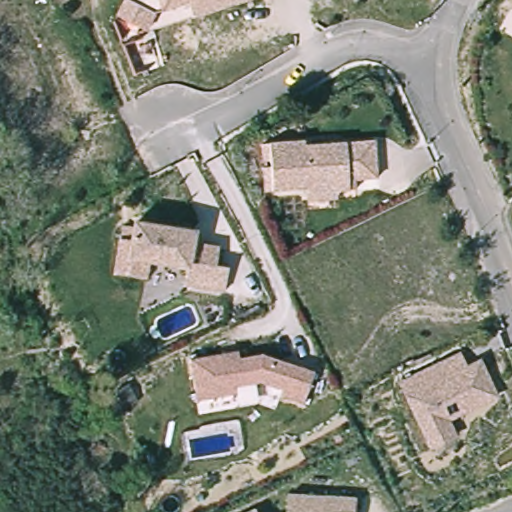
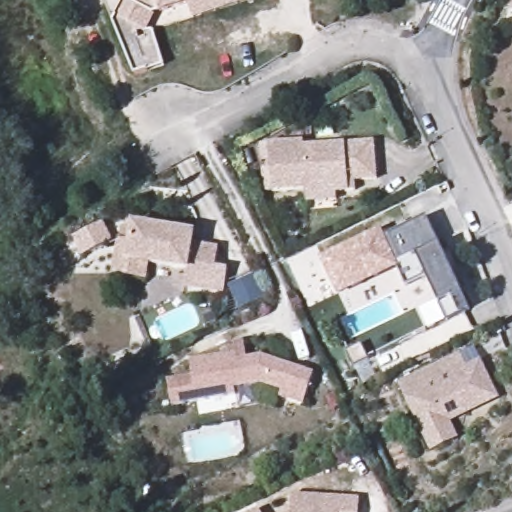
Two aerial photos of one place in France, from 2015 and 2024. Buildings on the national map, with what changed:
unchanged [(190,21),(186,6),(156,15),(147,32),(118,17),(128,0),(258,0),(190,21)]
unchanged [(512,6),(512,16),(507,14),(512,6)]
unchanged [(307,204),(307,197),(306,192),(272,195),(269,147),(304,144),(304,149),(374,144),(376,181),(354,183),(355,193),(349,194),(336,195),(336,202),(307,204)]
new [(438,306),(425,279),(405,288),(396,268),(394,268),(378,276),(339,295),(322,261),(367,239),(379,233),(382,239),(426,218),(444,256),(451,253),(456,264),(449,267),(470,311),(459,316),(446,323),(438,306)]
unchanged [(111,273),(116,238),(128,239),(131,223),(189,231),(188,241),(215,245),(213,263),(225,265),(221,289),(182,283),(185,266),(146,260),(143,277),(111,273)]
unchanged [(235,388),(236,395),(198,402),(191,361),(239,352),(240,360),(262,356),(315,373),(304,405),(281,397),(283,391),(261,383),(235,388)]
unchanged [(449,439),(430,448),(398,383),(429,368),(456,355),(464,372),(477,366),(490,393),(477,399),(439,418),(449,439)]
unchanged [(356,497),(356,512),(288,512),(288,495),(356,497)]
unchanged [(257,512),(253,512),(256,511),(257,512)]

